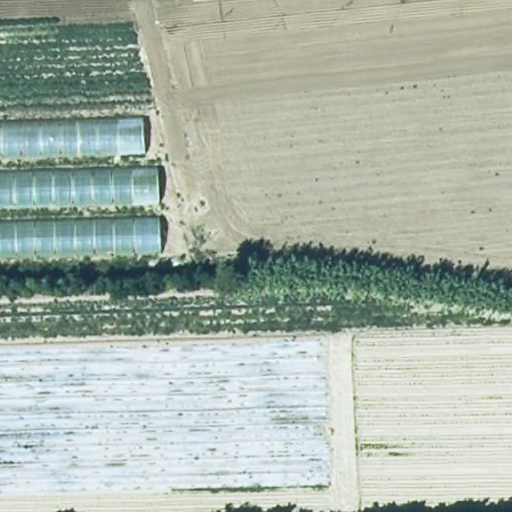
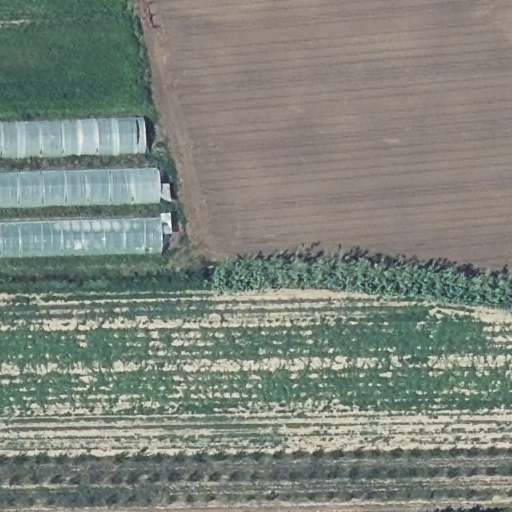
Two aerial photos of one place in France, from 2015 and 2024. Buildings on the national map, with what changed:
unchanged [(158,165),(159,252),(0,256),(0,122),(142,117),(144,165),(158,165)]

